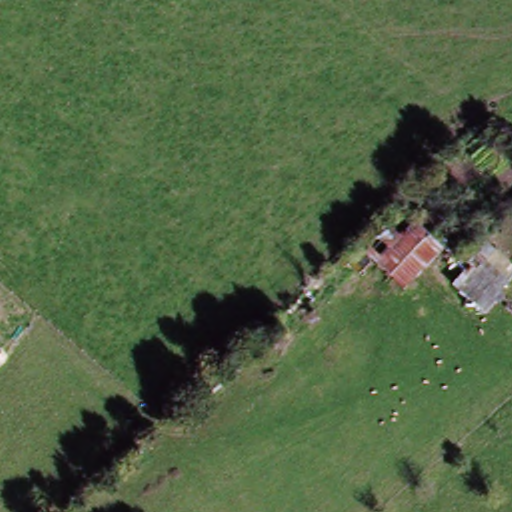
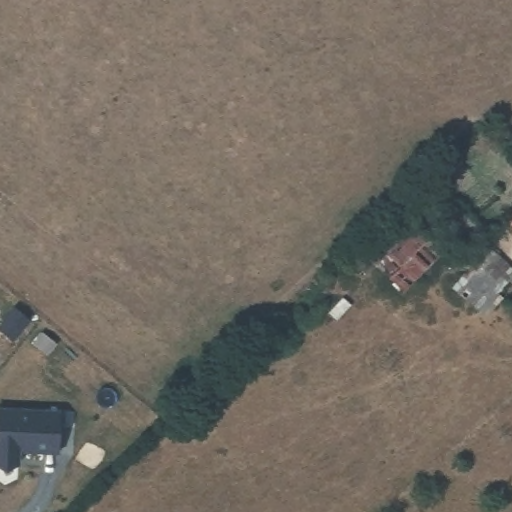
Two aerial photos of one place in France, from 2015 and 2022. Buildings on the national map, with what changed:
unchanged [(440,252),(399,291),(359,248),(400,211),(440,252)]
unchanged [(511,232),(512,231),(512,233),(511,232)]
new [(18,449),(18,458),(0,457),(0,409),(59,411),(58,449),(18,449)]

